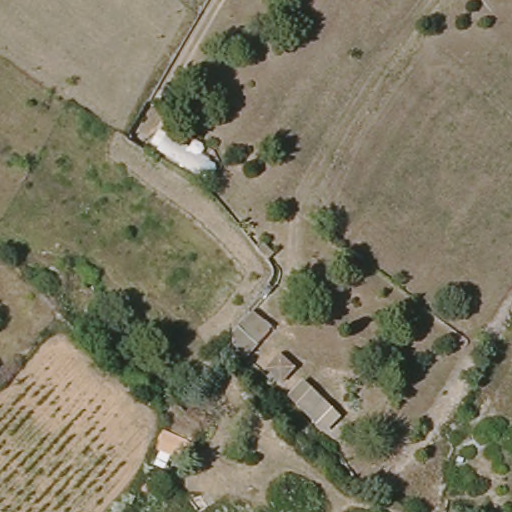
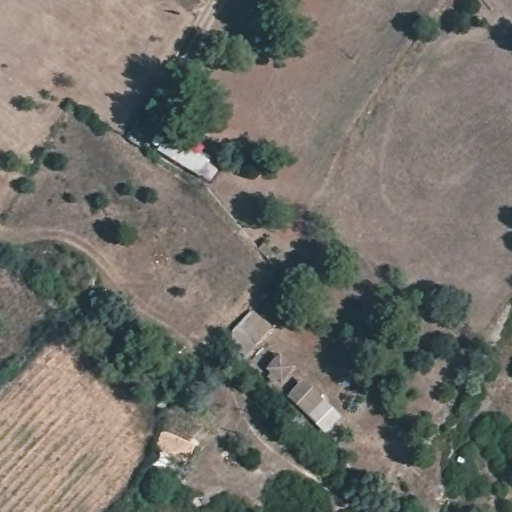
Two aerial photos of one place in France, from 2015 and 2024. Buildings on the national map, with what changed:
unchanged [(211,161),(199,178),(155,150),(166,134),(211,161)]
unchanged [(233,331),(251,311),(271,329),(247,356),(236,347),(233,331)]
unchanged [(282,353),(296,367),(282,381),(268,368),(282,353)]
unchanged [(303,381),(341,416),(321,436),(287,399),(303,381)]
unchanged [(163,432),(195,444),(187,462),(157,450),(163,432)]

